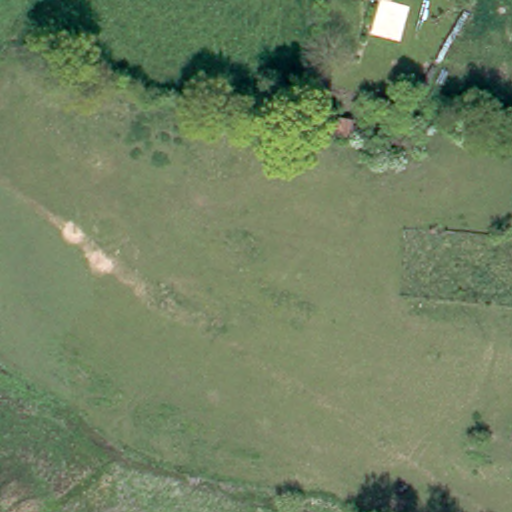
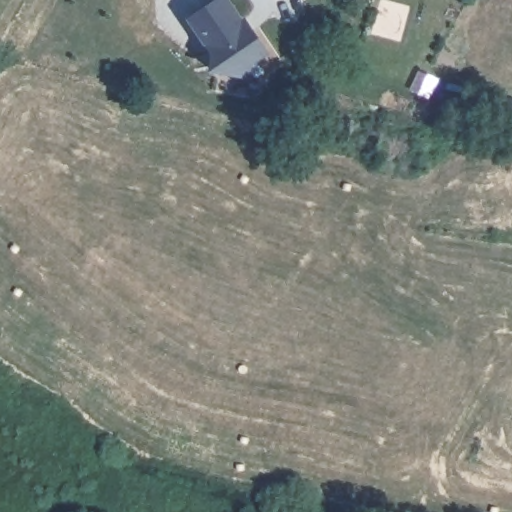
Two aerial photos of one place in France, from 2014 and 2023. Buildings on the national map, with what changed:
new [(243,21),(246,19),(255,30),(268,50),(252,61),(250,75),(213,68),(216,52),(192,17),(217,0),(229,0),(243,21)]
unchanged [(343,136),(346,120),(365,124),(361,139),(343,136)]

